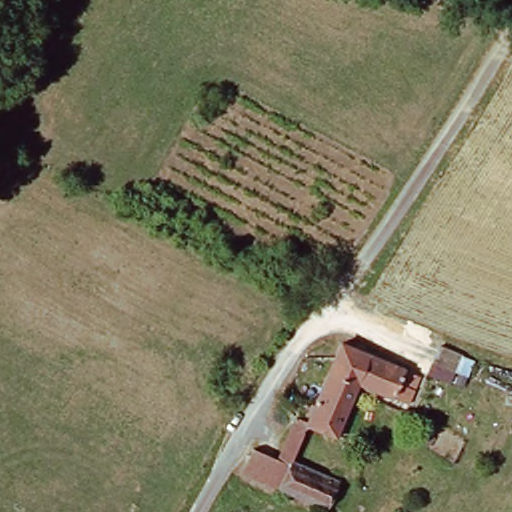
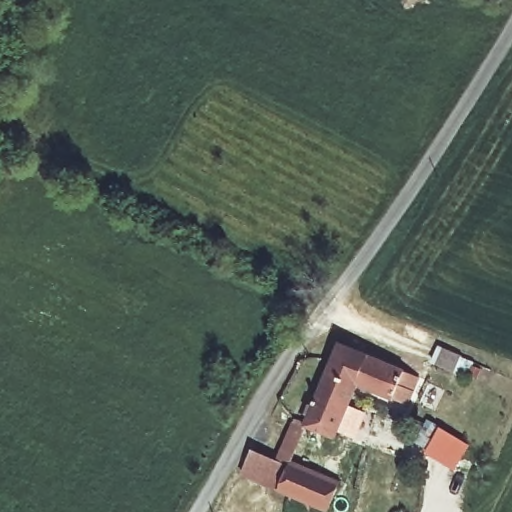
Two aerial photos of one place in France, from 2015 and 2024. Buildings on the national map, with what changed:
unchanged [(409,403),(363,386),(340,438),(311,426),(307,423),(345,342),(420,377),(409,403)]
unchanged [(311,426),(295,462),(282,492),(246,478),(260,450),(278,457),(297,417),(307,423),(311,426)]
new [(422,431),(432,437),(440,427),(471,447),(455,471),(413,443),(422,431)]
unchanged [(335,512),(329,512),(282,492),(295,462),(345,485),(335,512)]

